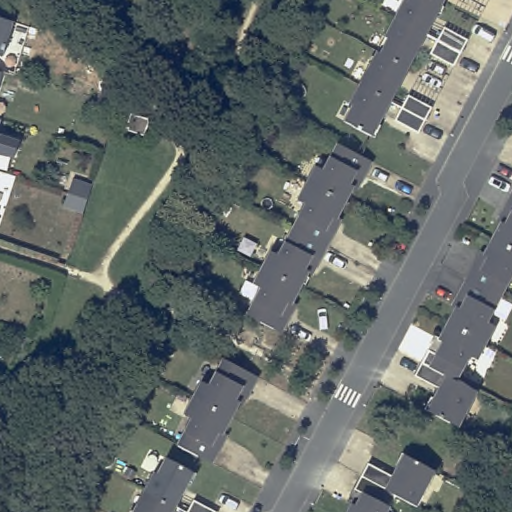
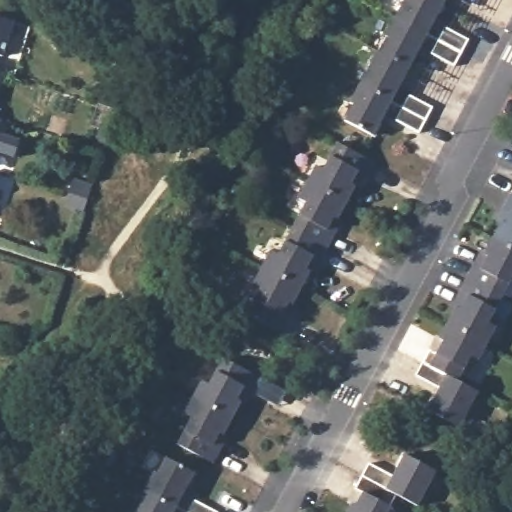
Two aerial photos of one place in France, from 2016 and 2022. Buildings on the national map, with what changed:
unchanged [(392,34),(389,32),(398,13),(405,0),(446,0),(441,10),(430,30),(412,64),(401,57),(384,49),(392,34)]
unchanged [(6,51),(0,49),(0,11),(17,16),(6,51)]
unchanged [(395,96),(366,82),(374,67),(371,65),(381,46),(384,49),(401,57),(412,64),(395,96)]
unchanged [(0,88),(0,65),(6,68),(0,88)]
unchanged [(376,131),(348,117),(357,101),(353,99),(363,80),(366,82),(395,96),(376,131)]
unchanged [(96,103),(101,89),(120,95),(115,109),(96,103)]
unchanged [(394,121),(401,108),(407,95),(431,108),(424,120),(418,133),(394,121)]
unchanged [(0,128),(0,112),(5,114),(0,128)]
unchanged [(149,120),(143,136),(124,130),(130,114),(149,120)]
unchanged [(18,152),(0,146),(0,128),(23,136),(18,152)]
unchanged [(372,157),(364,172),(356,167),(350,180),(354,182),(345,198),(307,178),(315,161),(323,165),(337,139),(372,157)]
unchanged [(294,226),(292,224),(305,199),(298,195),(307,178),(345,198),(336,215),(332,212),(326,225),(333,230),(326,243),(294,226)]
unchanged [(63,207),(67,193),(71,179),(91,186),(86,199),(82,213),(63,207)]
unchanged [(491,234),(499,218),(503,220),(510,208),(502,204),(510,189),(512,190),(512,244),(491,234)]
unchanged [(319,257),(311,253),(304,265),(308,267),(300,283),(297,282),(262,263),(270,247),(278,251),(292,224),(294,226),(326,243),(319,257)]
unchanged [(499,292),(465,274),(472,261),(480,265),(486,253),(482,250),(491,234),(512,244),(512,268),(499,292)]
unchanged [(271,323),(246,310),(260,283),(253,279),(262,263),(297,282),(300,283),(291,300),(287,297),(280,310),(288,314),(281,328),(271,323)]
unchanged [(499,292),(486,318),(493,321),(485,338),(453,321),(447,318),(456,302),(460,304),(467,292),(459,287),(465,274),(499,292)]
unchanged [(453,321),(485,338),(476,355),(468,351),(455,376),(449,373),(437,367),(420,358),(427,345),(435,349),(442,337),(438,335),(447,318),(453,321)]
unchanged [(256,372),(248,387),(240,383),(234,395),(238,397),(229,414),(218,408),(190,394),(190,393),(199,377),(207,381),(221,354),(256,372)]
unchanged [(437,367),(449,373),(455,376),(476,387),(466,406),(463,404),(454,420),(453,420),(426,405),(438,384),(413,371),(420,358),(437,367)]
unchanged [(218,408),(229,414),(221,430),(217,428),(211,441),(219,445),(211,459),(209,458),(176,441),(190,414),(182,410),(190,394),(218,408)]
unchanged [(435,464),(427,481),(430,482),(420,501),(400,490),(366,472),(372,459),(396,471),(408,450),(435,464)]
unchanged [(174,502),(146,488),(143,486),(152,468),(155,470),(163,454),(192,468),(174,502)]
unchanged [(400,490),(388,512),(350,512),(357,499),(361,501),(367,489),(359,485),(366,472),(400,490)]
unchanged [(169,512),(129,512),(134,501),(138,503),(146,488),(174,502),(169,512)]
unchanged [(192,500),(214,512),(186,512),(192,500)]

